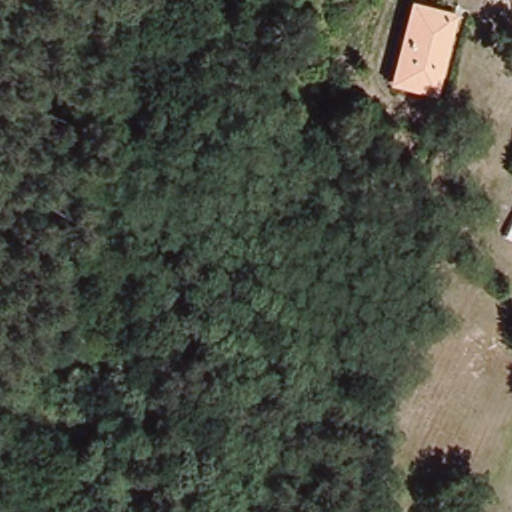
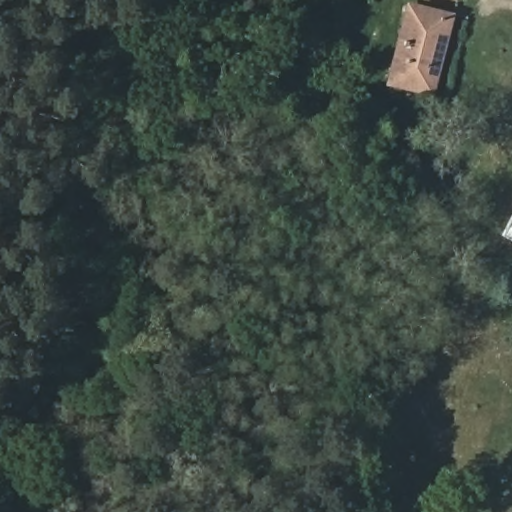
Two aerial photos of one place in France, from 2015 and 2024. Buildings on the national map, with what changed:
unchanged [(397,77),(417,8),(457,21),(432,88),(397,77)]
unchanged [(505,224),(512,210),(512,231),(505,227),(505,224)]

